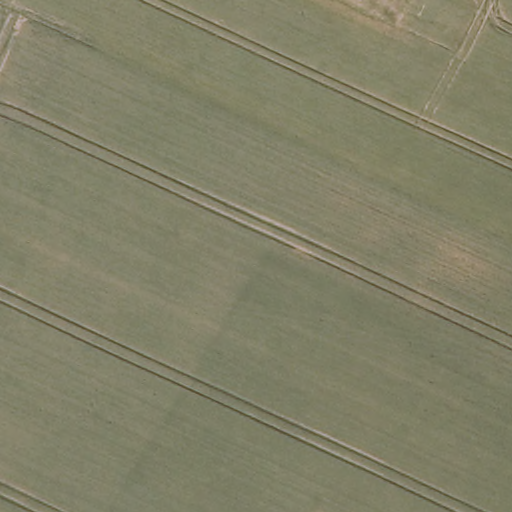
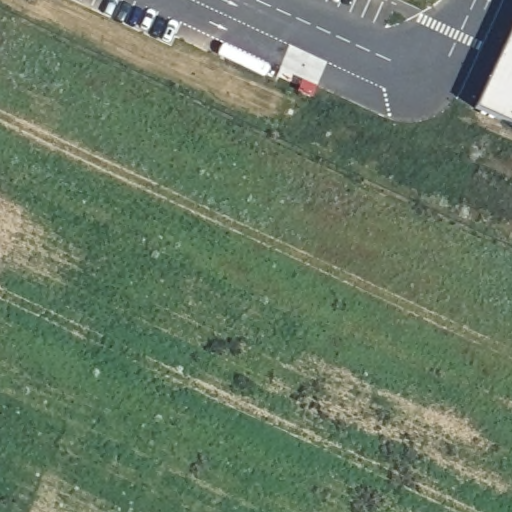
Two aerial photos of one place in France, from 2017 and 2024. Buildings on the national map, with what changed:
new [(512,28),(512,125),(474,109),(512,28)]

